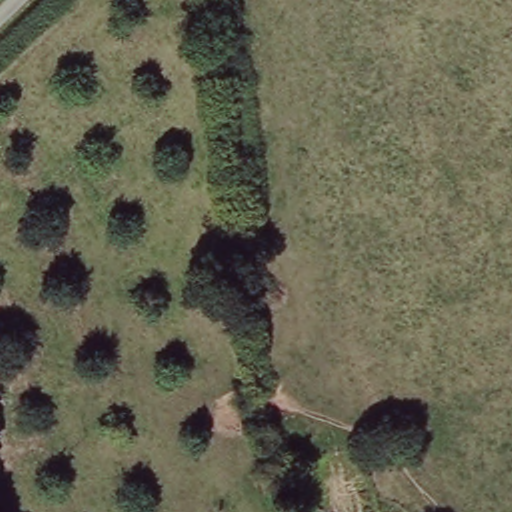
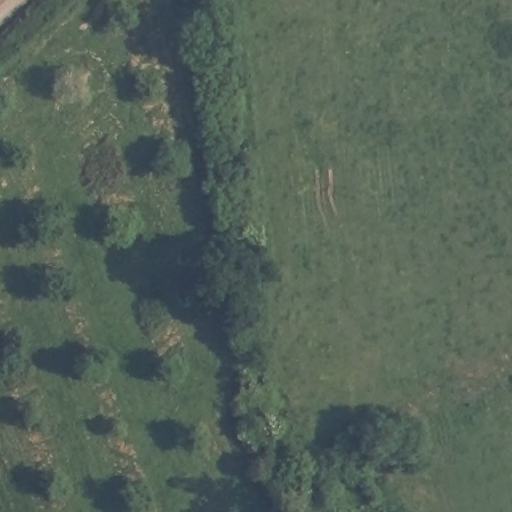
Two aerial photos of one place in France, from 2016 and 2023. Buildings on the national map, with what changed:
[]

